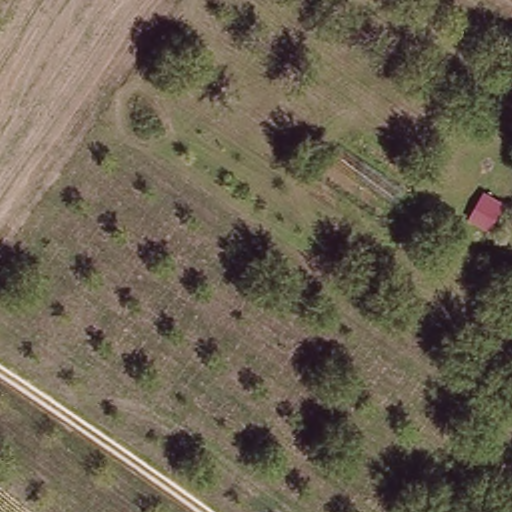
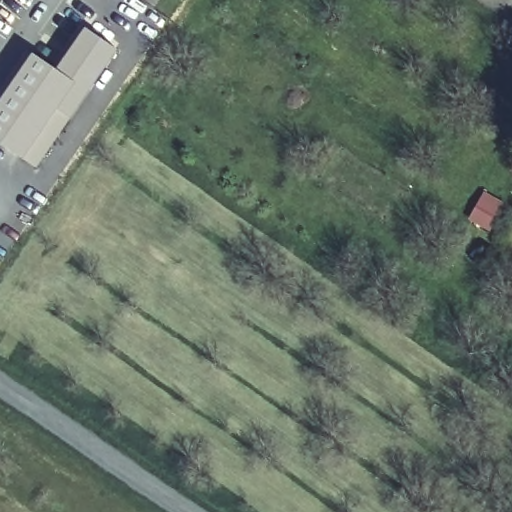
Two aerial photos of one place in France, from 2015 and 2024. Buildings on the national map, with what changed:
new [(33,53),(55,69),(85,28),(118,50),(91,92),(35,169),(0,146),(0,101),(33,53)]
new [(485,192),(509,205),(492,232),(470,219),(485,192)]

